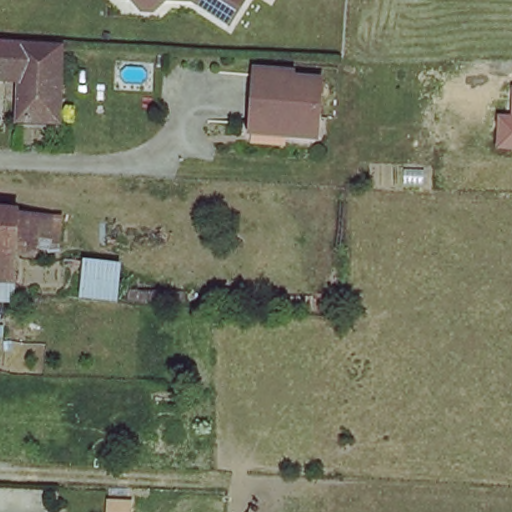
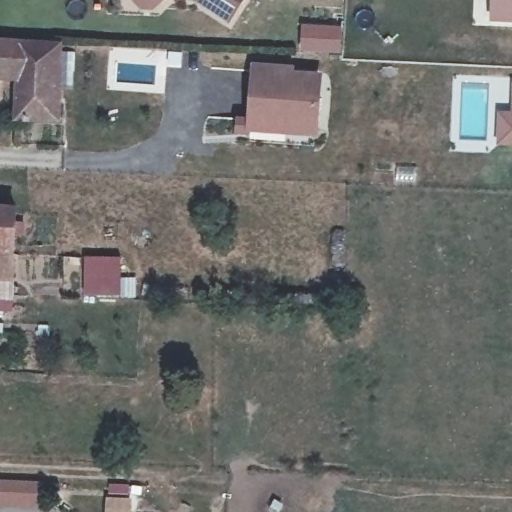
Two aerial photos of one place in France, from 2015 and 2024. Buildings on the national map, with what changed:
unchanged [(168,5),(158,11),(146,13),(134,9),(130,0),(171,0),(168,5)]
unchanged [(225,22),(196,2),(176,0),(242,0),(225,22)]
new [(492,13),(492,0),(512,0),(512,14),(492,13)]
unchanged [(9,70),(0,70),(0,34),(10,35),(9,70)]
unchanged [(25,87),(26,70),(9,70),(10,35),(66,39),(65,88),(64,110),(25,109),(25,87)]
unchanged [(284,133),(284,126),(253,124),(254,71),(289,73),(289,79),(316,81),(313,135),(284,133)]
unchanged [(496,112),(510,112),(511,83),(512,83),(512,145),(496,144),(496,112)]
unchanged [(16,294),(0,295),(0,204),(18,205),(42,206),(65,208),(64,248),(15,249),(16,294)]
unchanged [(117,301),(76,299),(82,256),(121,259),(117,301)]
new [(43,509),(0,508),(0,481),(44,482),(43,509)]
unchanged [(100,512),(100,500),(131,500),(131,512),(100,512)]

